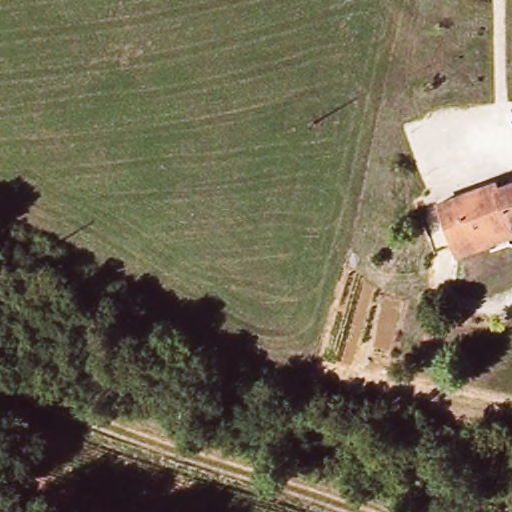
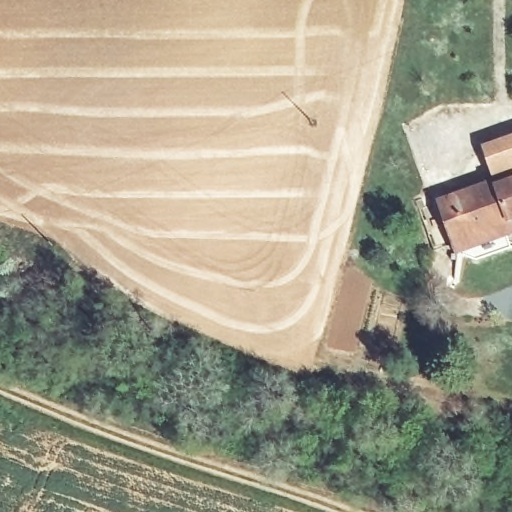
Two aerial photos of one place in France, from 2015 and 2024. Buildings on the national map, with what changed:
new [(512,134),(512,182),(498,187),(497,184),(482,145),(512,134)]
unchanged [(456,246),(441,207),(497,184),(498,187),(512,182),(512,221),(511,221),(512,225),(512,238),(460,257),(456,246)]

